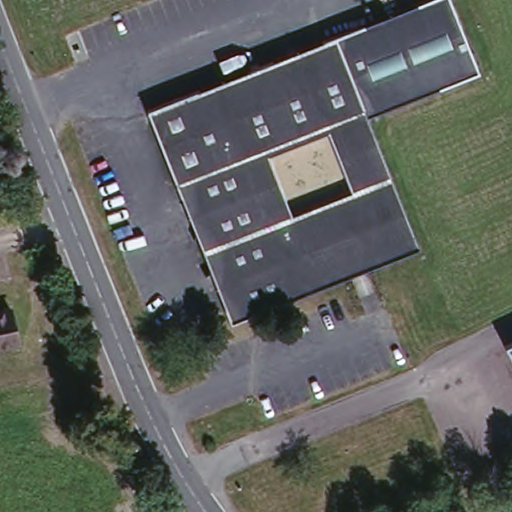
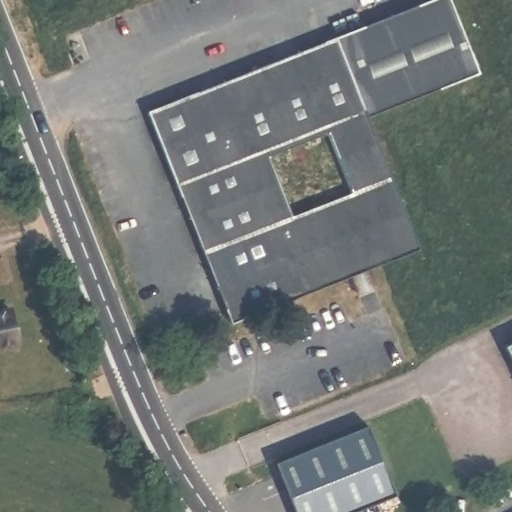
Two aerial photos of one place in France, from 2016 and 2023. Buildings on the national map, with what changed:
unchanged [(365,27),(376,32),(414,17),(418,7),(437,0),(450,0),(479,76),(359,123),(355,115),(364,111),(336,40),(365,27)]
unchanged [(198,91),(207,96),(245,81),(249,71),(273,63),(281,67),(320,52),(324,43),(336,40),(364,111),(355,115),(359,123),(404,245),(282,292),(284,299),(226,322),(147,110),(198,91)]
unchanged [(9,313),(17,346),(0,350),(0,315),(9,313)]
unchanged [(512,369),(501,347),(512,341),(512,369)]
new [(394,495),(350,512),(293,512),(275,463),(367,426),(394,495)]

